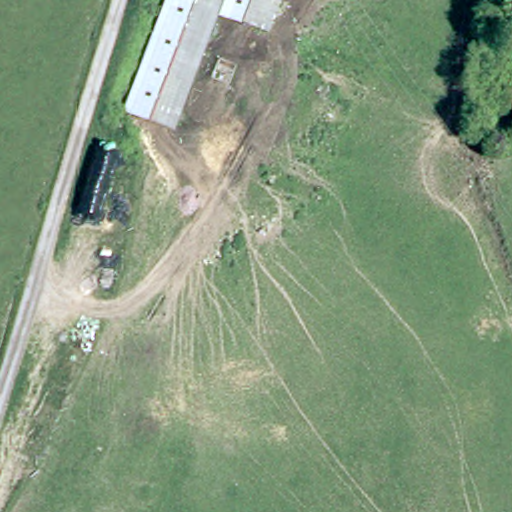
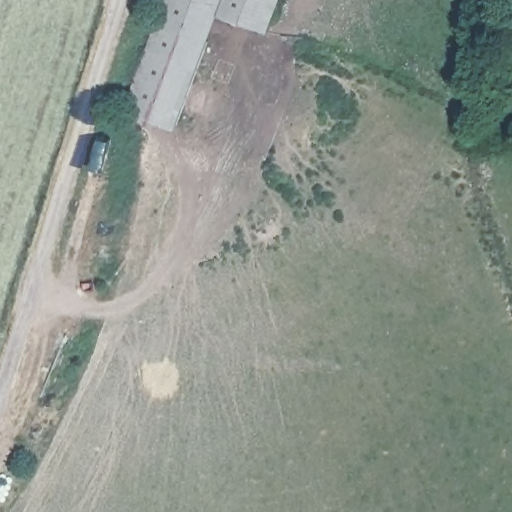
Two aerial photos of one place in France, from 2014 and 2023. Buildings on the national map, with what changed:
unchanged [(175,0),(193,0),(230,15),(184,134),(125,116),(175,0)]
unchanged [(274,32),(230,15),(193,0),(286,0),(274,32)]

